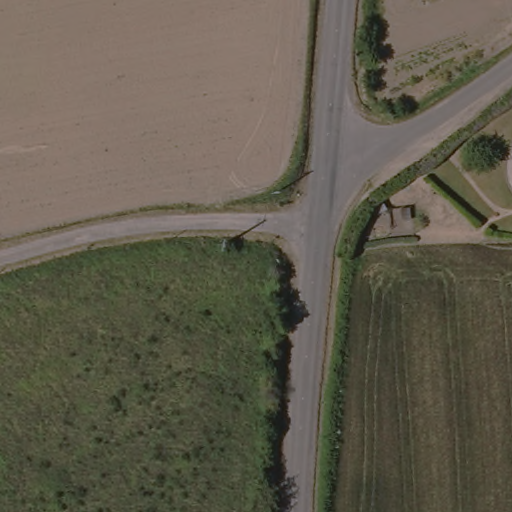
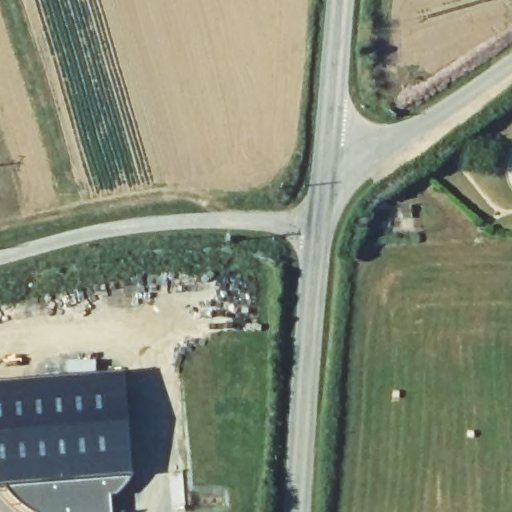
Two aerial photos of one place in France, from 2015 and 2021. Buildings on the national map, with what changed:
new [(30,509),(20,503),(12,494),(6,484),(0,486),(0,383),(67,378),(66,364),(95,363),(96,376),(123,374),(131,476),(125,485),(119,490),(110,497),(111,512),(37,512),(30,509)]

